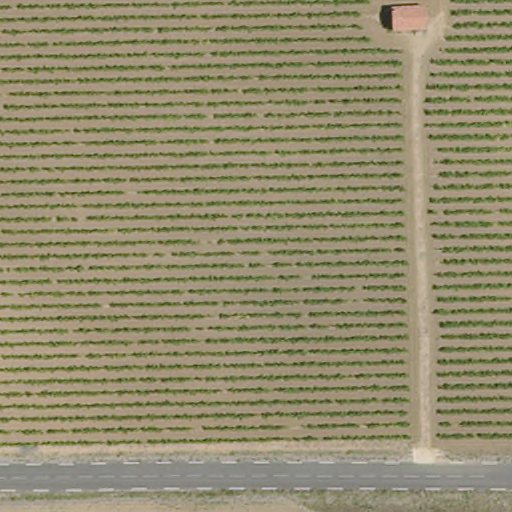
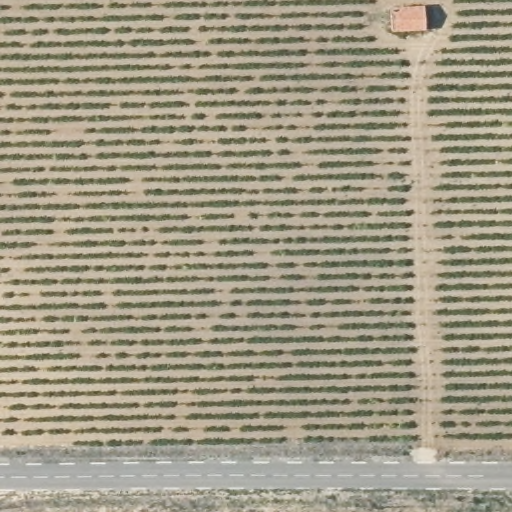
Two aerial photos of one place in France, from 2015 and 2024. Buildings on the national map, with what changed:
unchanged [(418,33),(384,36),(384,14),(417,12),(418,33)]

